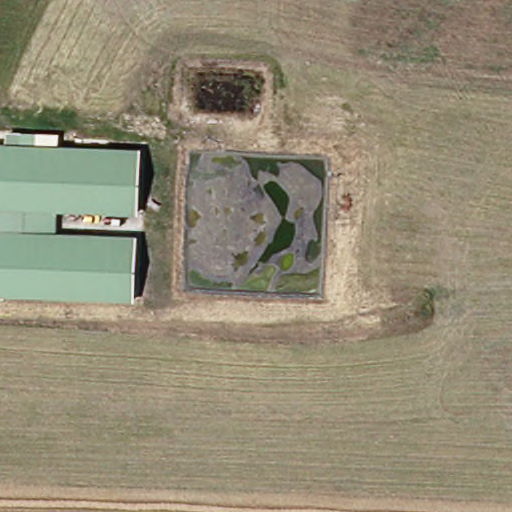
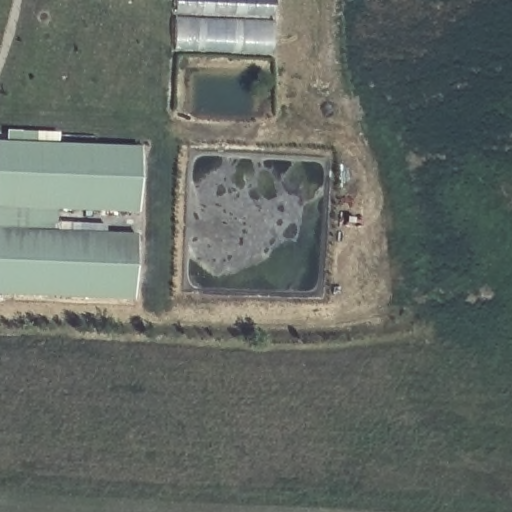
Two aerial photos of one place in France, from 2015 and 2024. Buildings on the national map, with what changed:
new [(273,55),(175,50),(176,0),(273,0),(273,55)]
unchanged [(137,210),(52,207),(0,205),(0,142),(140,148),(137,210)]
unchanged [(51,232),(0,229),(0,205),(52,207),(51,232)]
unchanged [(136,235),(134,298),(0,292),(0,229),(51,232),(136,235)]

